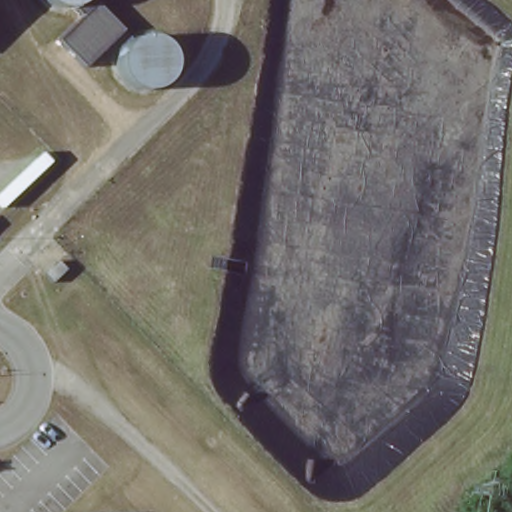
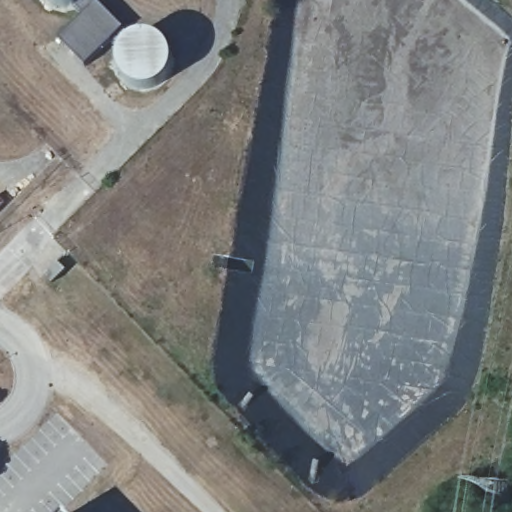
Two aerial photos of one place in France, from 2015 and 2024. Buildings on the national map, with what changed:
unchanged [(128,37),(134,34),(140,34),(146,35),(152,37),(157,41),(161,45),(163,51),(165,57),(164,63),(162,69),(159,74),(154,78),(149,81),(143,82),(137,82),(131,81),(126,78),(121,73),(118,68),(116,62),(116,56),(117,51),(110,44),(85,69),(58,41),(84,17),(76,9),(72,10),(66,10),(60,9),(55,6),(51,2),(50,0),(93,0),(128,37)]

